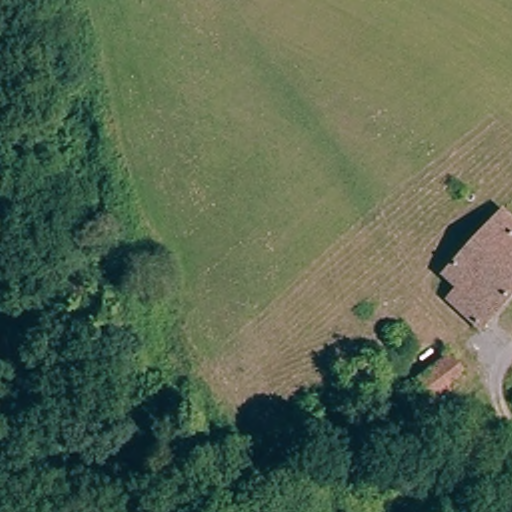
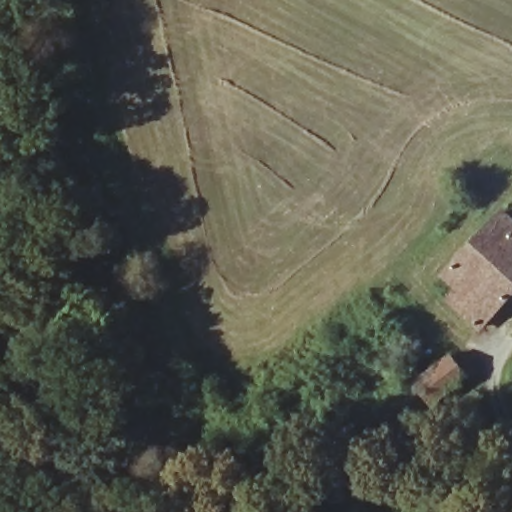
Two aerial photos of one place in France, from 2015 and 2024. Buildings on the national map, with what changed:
unchanged [(450,282),(502,211),(512,218),(512,300),(490,330),(462,307),(469,297),(450,282)]
unchanged [(445,353),(468,377),(436,407),(415,382),(445,353)]

